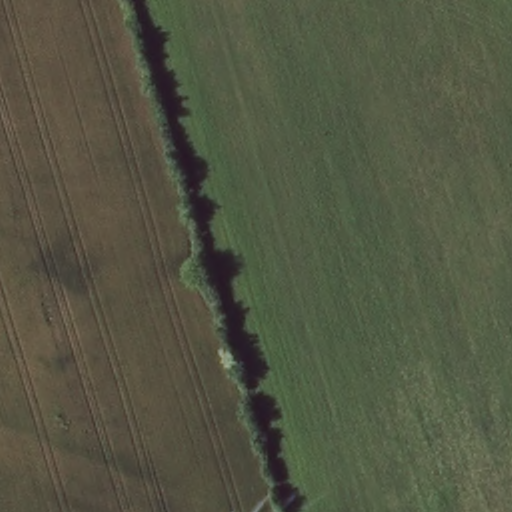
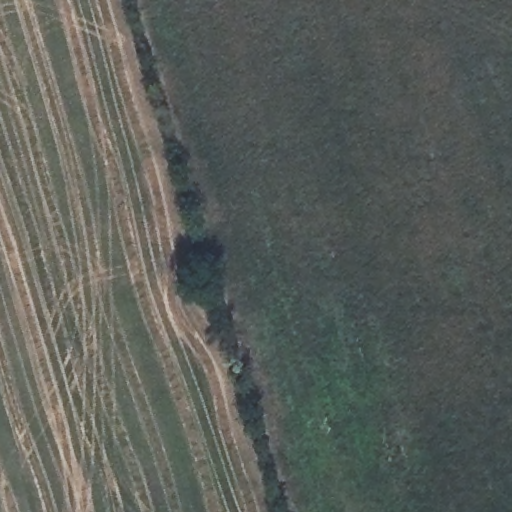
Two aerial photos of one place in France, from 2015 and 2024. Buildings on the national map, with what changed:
[]

